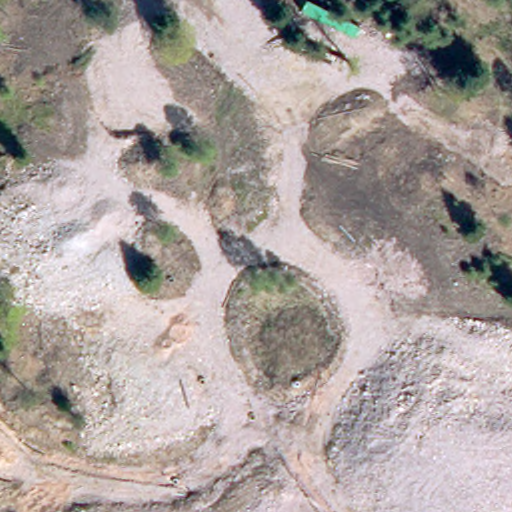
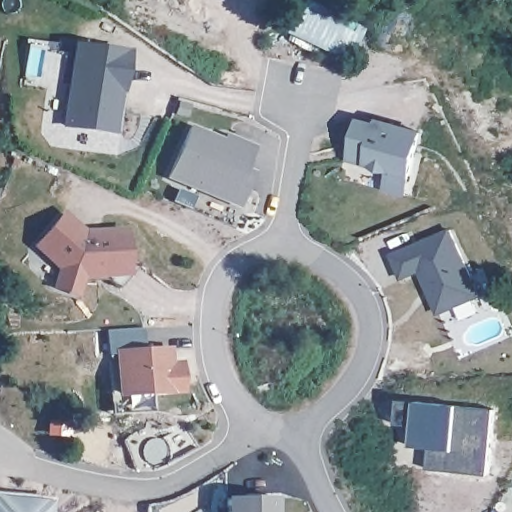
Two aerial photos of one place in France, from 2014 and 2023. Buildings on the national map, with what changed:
new [(364,28),(349,63),(284,34),(297,6),(301,9),(305,0),(364,28)]
new [(112,131),(65,123),(75,47),(123,52),(112,131)]
new [(360,118),(376,121),(378,118),(423,129),(407,196),(386,191),(390,171),(366,164),(348,160),(360,118)]
new [(257,145),(248,167),(256,171),(241,208),(169,178),(191,125),(223,138),(225,133),(257,145)]
new [(86,229),(128,228),(128,252),(141,267),(121,288),(107,278),(84,281),(78,298),(50,290),(56,270),(30,247),(64,209),(86,229)]
new [(417,269),(399,276),(389,253),(449,228),(476,294),(440,309),(435,311),(417,269)]
new [(145,327),(147,346),(172,347),(175,393),(117,397),(114,354),(106,354),(106,330),(145,327)]
new [(428,447),(410,445),(412,424),(394,422),(397,398),(493,408),(486,474),(449,470),(426,467),(426,461),(428,447)]
new [(68,437),(63,437),(48,436),(48,426),(63,427),(68,427),(68,437)]
new [(279,496),(279,512),(225,512),(225,498),(279,496)]

